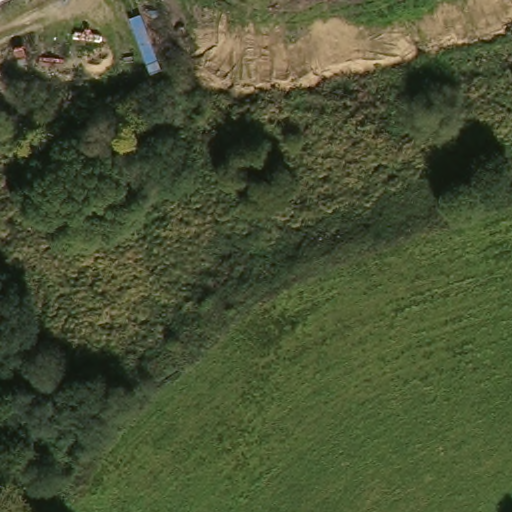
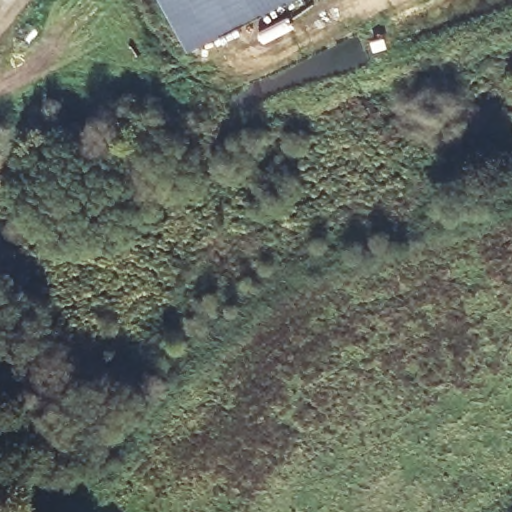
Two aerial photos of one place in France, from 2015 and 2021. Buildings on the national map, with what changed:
new [(164,0),(291,0),(189,51),(164,0)]

